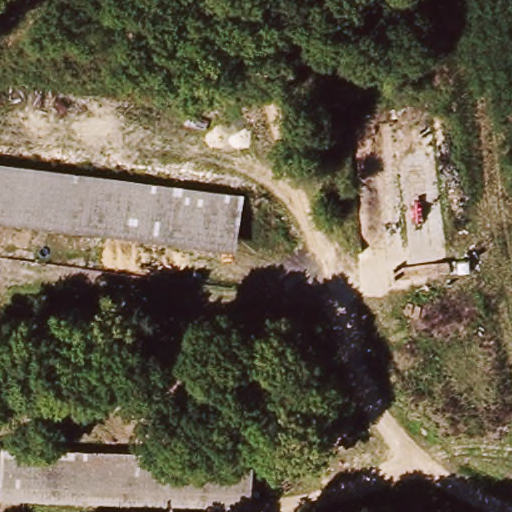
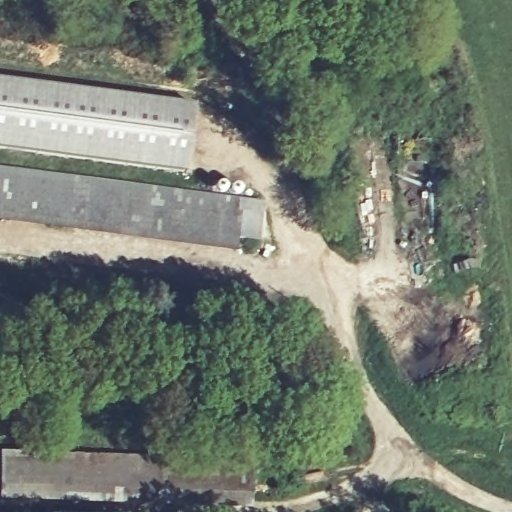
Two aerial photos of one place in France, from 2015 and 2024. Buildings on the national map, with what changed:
new [(0,149),(0,78),(194,103),(185,173),(0,149)]
unchanged [(0,218),(0,178),(245,211),(239,252),(0,218)]
unchanged [(251,506),(2,494),(4,462),(252,472),(251,506)]

